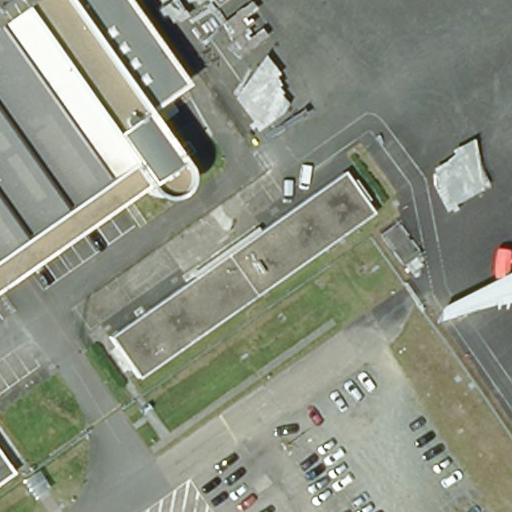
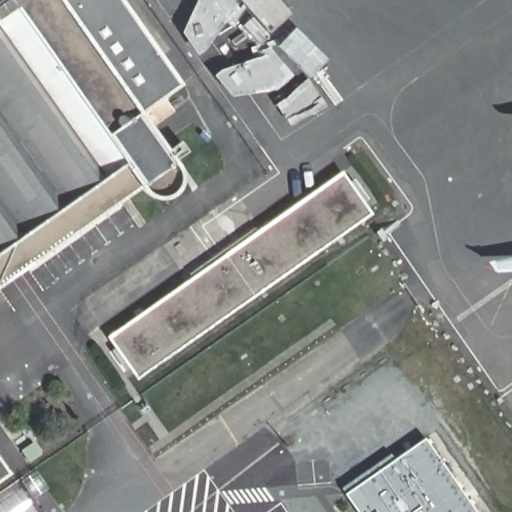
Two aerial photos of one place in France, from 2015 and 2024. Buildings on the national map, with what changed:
unchanged [(166,84),(123,113),(165,173),(164,181),(162,186),(158,190),(154,192),(149,194),(144,194),(139,194),(134,193),(127,189),(0,276),(0,0),(108,0),(166,84)]
unchanged [(141,382),(110,339),(344,176),(375,219),(141,382)]
new [(376,512),(359,512),(346,494),(341,489),(391,453),(394,459),(426,437),(477,512),(377,512),(376,512)]
unchanged [(0,487),(0,465),(10,480),(0,487)]

